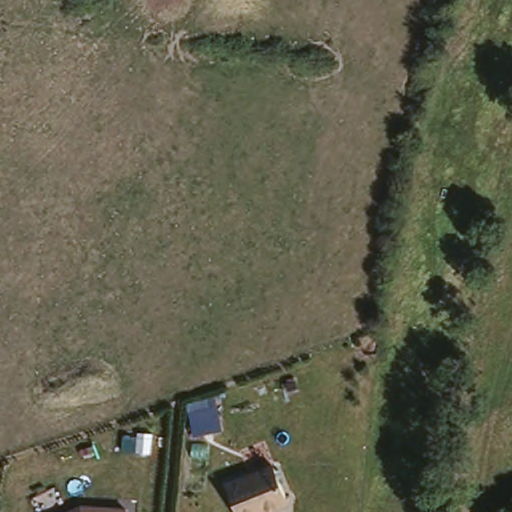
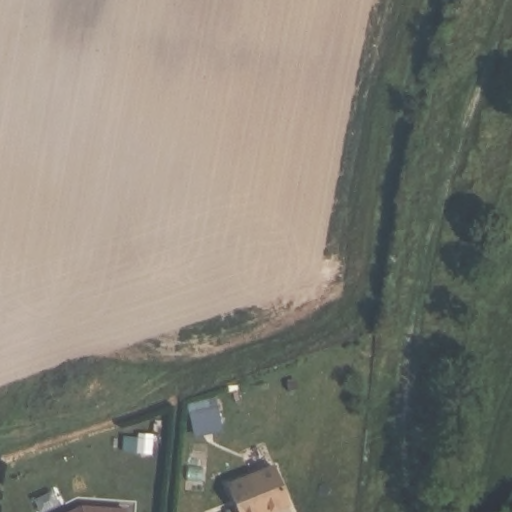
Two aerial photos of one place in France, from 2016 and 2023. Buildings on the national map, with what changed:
unchanged [(217,407),(223,430),(196,437),(190,415),(217,407)]
unchanged [(287,503),(264,512),(237,512),(224,482),(271,465),(287,503)]
unchanged [(80,512),(86,510),(128,510),(128,512),(80,512)]

